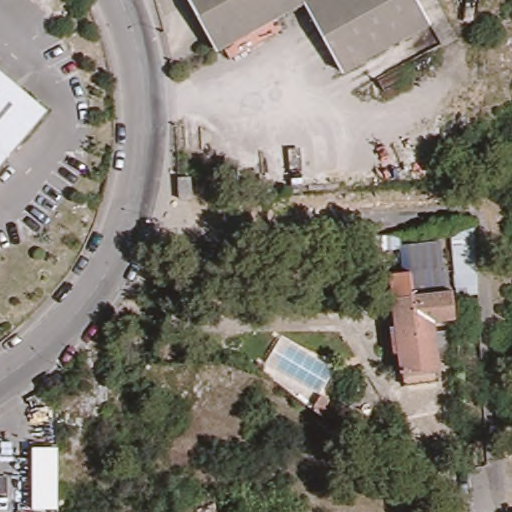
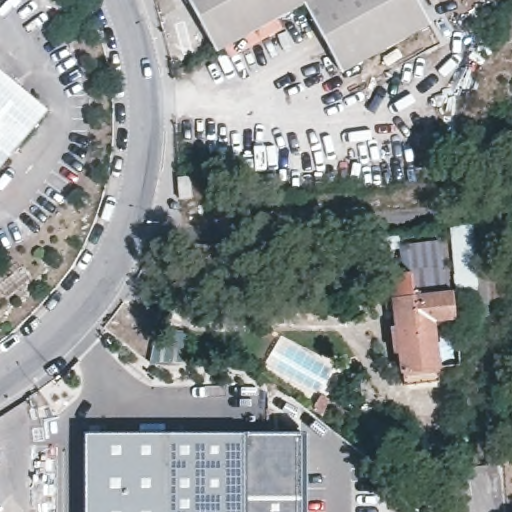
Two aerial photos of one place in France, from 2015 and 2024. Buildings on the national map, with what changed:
unchanged [(193,0),(311,0),(307,2),(219,51),(193,0)]
unchanged [(311,0),(419,0),(432,23),(346,70),(307,2),(311,0)]
unchanged [(0,66),(49,108),(0,167),(0,66)]
unchanged [(189,175),(190,197),(176,197),(174,176),(189,175)]
unchanged [(443,246),(446,229),(474,226),(476,289),(449,289),(443,246)]
unchanged [(441,368),(406,372),(404,357),(397,358),(394,337),(401,335),(395,279),(407,278),(404,250),(443,246),(449,289),(449,295),(455,295),(458,320),(436,323),(441,368)]
demolished [(309,389),(266,363),(284,334),(326,361),(309,389)]
new [(306,432),(306,512),(86,512),(86,432),(306,432)]

